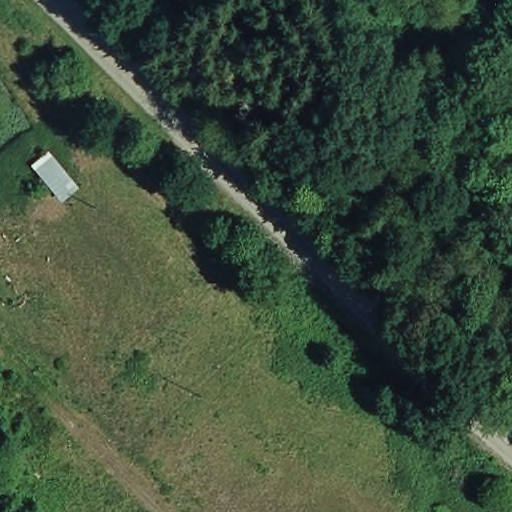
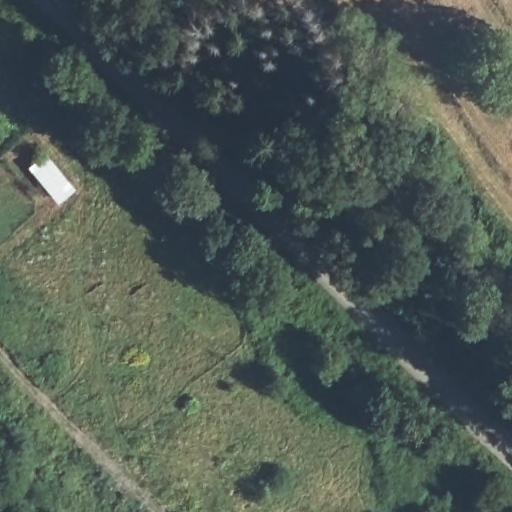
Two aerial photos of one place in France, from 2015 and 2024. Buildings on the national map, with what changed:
unchanged [(51,152),(82,191),(59,207),(30,168),(51,152)]

